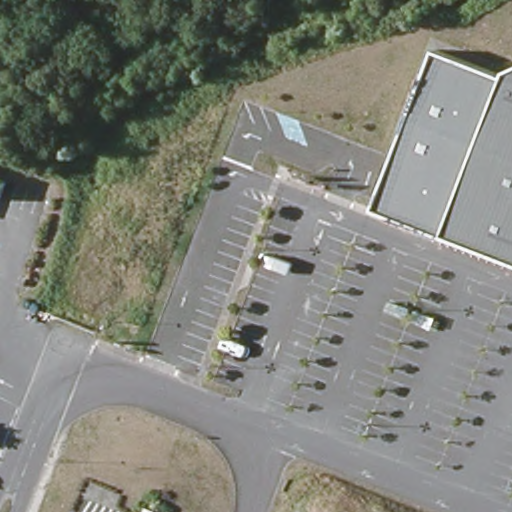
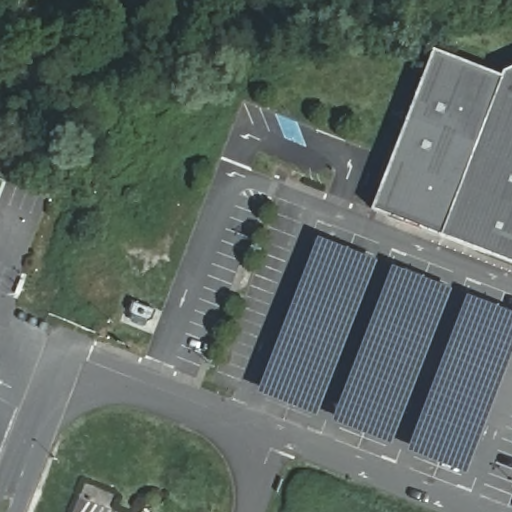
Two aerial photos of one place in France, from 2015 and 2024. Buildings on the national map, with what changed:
unchanged [(505,72),(512,69),(512,265),(369,210),(429,51),(505,72)]
unchanged [(1,202),(0,201),(0,180),(7,183),(1,202)]
new [(323,237),(380,262),(320,415),(263,393),(323,237)]
new [(398,266),(454,290),(396,445),(340,423),(398,266)]
new [(474,297),(512,311),(512,366),(471,473),(415,452),(474,297)]
unchanged [(152,512),(141,512),(142,508),(152,512)]

